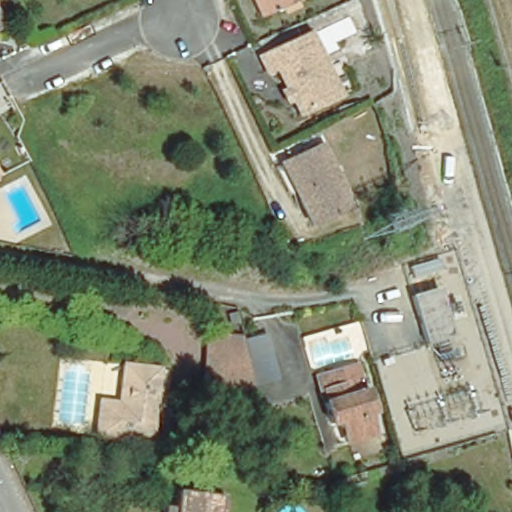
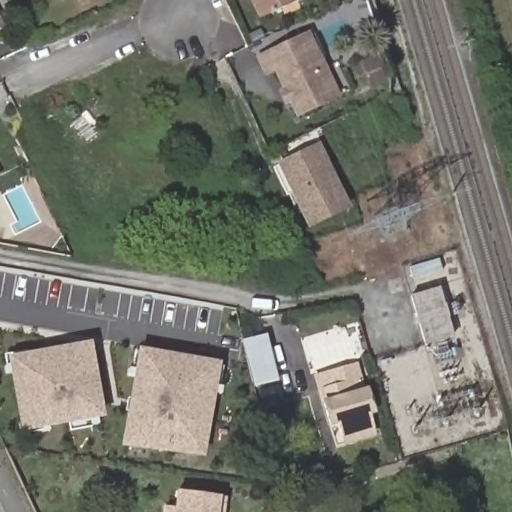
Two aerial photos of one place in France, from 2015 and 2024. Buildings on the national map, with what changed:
unchanged [(261,19),(252,0),(299,0),(300,2),(261,19)]
unchanged [(0,41),(0,24),(7,38),(0,41)]
unchanged [(288,98),(292,96),(282,74),(270,80),(262,64),(311,41),(341,104),(305,121),(297,104),(292,106),(288,98)]
unchanged [(342,207),(305,225),(286,185),(278,189),(268,168),(276,164),(313,145),(342,207)]
unchanged [(424,344),(411,297),(438,289),(451,338),(424,344)]
new [(281,379),(254,387),(243,340),(267,334),(281,379)]
demolished [(213,339),(240,339),(248,359),(272,352),(283,387),(261,393),(210,389),(213,339)]
new [(98,417),(100,426),(91,427),(90,418),(47,425),(49,433),(42,434),(40,422),(23,424),(13,373),(7,374),(5,366),(29,361),(29,354),(89,346),(102,416),(98,417)]
new [(45,353),(44,349),(56,347),(57,350),(45,353)]
new [(29,361),(6,366),(4,355),(27,351),(29,354),(29,361)]
new [(141,372),(135,372),(138,353),(144,354),(141,372)]
new [(131,378),(132,371),(141,372),(144,354),(212,366),(223,368),(219,388),(209,387),(222,389),(221,396),(212,394),(201,455),(129,443),(140,379),(131,378)]
demolished [(101,442),(105,406),(123,408),(129,371),(163,376),(154,449),(101,442)]
unchanged [(372,371),(380,396),(371,398),(378,423),(372,424),(378,446),(349,454),(343,434),(334,438),(320,387),(372,371)]
new [(135,410),(129,409),(130,399),(136,400),(135,410)]
new [(92,428),(70,432),(67,422),(90,418),(92,428)]
new [(20,435),(18,426),(40,422),(42,431),(20,435)]
unchanged [(357,490),(341,493),(339,476),(356,474),(357,490)]
unchanged [(232,498),(230,512),(179,512),(180,508),(189,509),(192,492),(232,498)]

